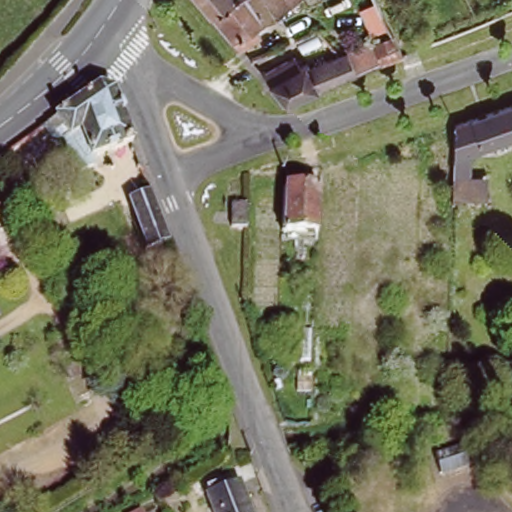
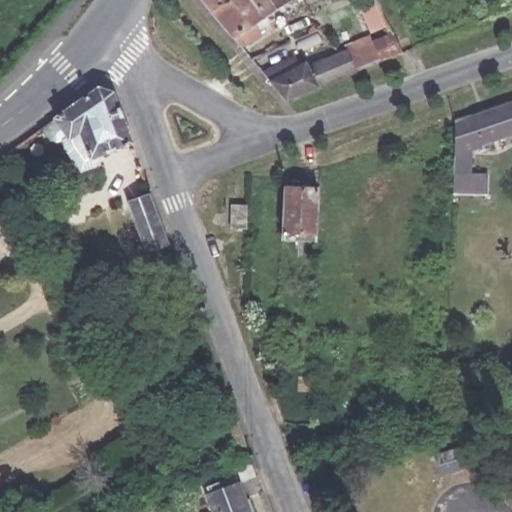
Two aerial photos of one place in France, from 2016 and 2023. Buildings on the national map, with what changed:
unchanged [(234,38),(233,38),(230,34),(229,32),(228,31),(213,11),(204,0),(293,0),(292,0),(290,2),(256,25),(262,33),(241,48),(234,38)]
unchanged [(397,36),(397,38),(405,54),(392,59),(385,62),(384,63),(374,41),(395,32),(397,36)]
unchanged [(298,57),(305,66),(310,64),(313,68),(345,55),(352,51),(360,69),(361,71),(361,72),(289,102),(264,73),(298,57)]
unchanged [(45,131),(102,90),(118,96),(137,146),(97,160),(100,169),(87,173),(70,140),(60,145),(53,144),(45,131)]
unchanged [(484,195),(454,194),(455,172),(455,121),(512,101),(512,136),(466,151),(465,172),(484,173),(484,195)]
unchanged [(282,190),(317,191),(317,236),(282,235),(282,190)]
unchanged [(147,248),(129,201),(152,193),(169,241),(147,248)]
unchanged [(253,203),(252,226),(236,225),(237,203),(253,203)]
unchanged [(462,446),(467,468),(438,478),(430,457),(462,446)]
unchanged [(205,503),(209,501),(206,495),(219,490),(221,496),(232,492),(237,490),(245,512),(250,510),(251,512),(208,512),(205,503)]

